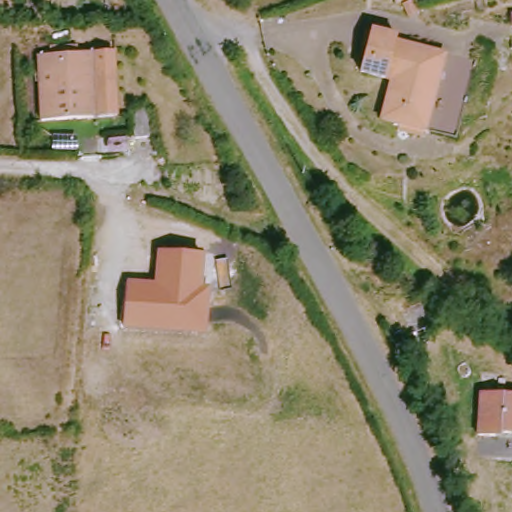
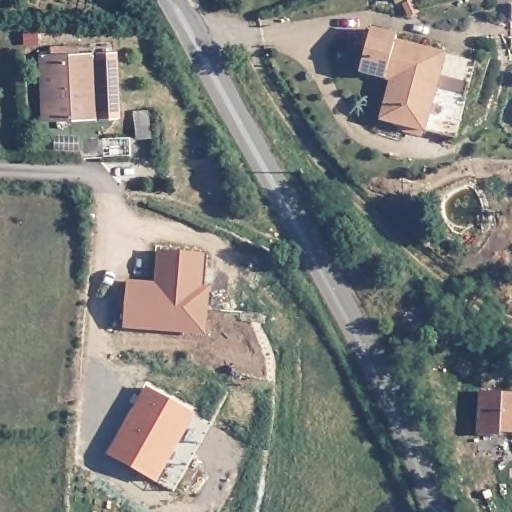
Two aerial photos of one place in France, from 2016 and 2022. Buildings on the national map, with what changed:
unchanged [(397,2),(396,0),(402,0),(397,2)]
unchanged [(380,121),(387,85),(358,71),(370,25),(448,51),(425,133),(380,121)]
unchanged [(117,49),(120,119),(40,119),(37,51),(117,49)]
unchanged [(202,290),(207,289),(205,335),(124,327),(128,282),(155,283),(158,254),(204,255),(202,290)]
new [(108,453),(147,386),(195,415),(158,481),(108,453)]
unchanged [(497,430),(496,434),(480,432),(485,389),(512,392),(512,432),(497,430)]

